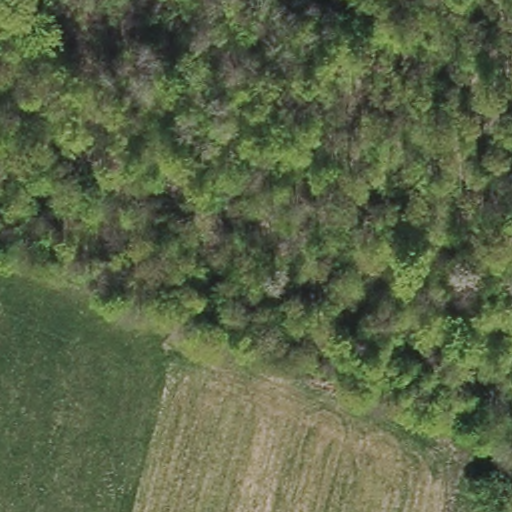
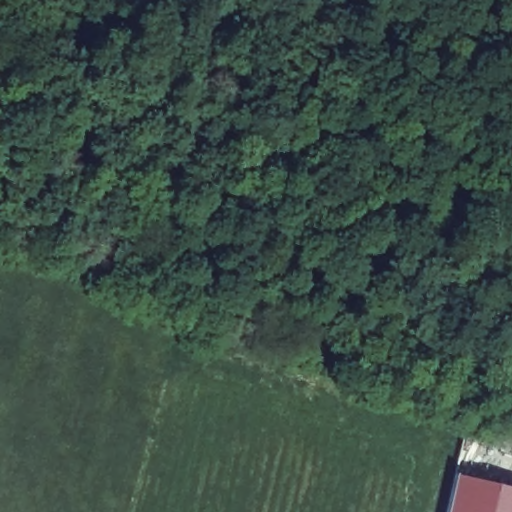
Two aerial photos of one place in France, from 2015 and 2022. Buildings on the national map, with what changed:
new [(512,512),(446,512),(458,458),(512,477),(512,512)]

